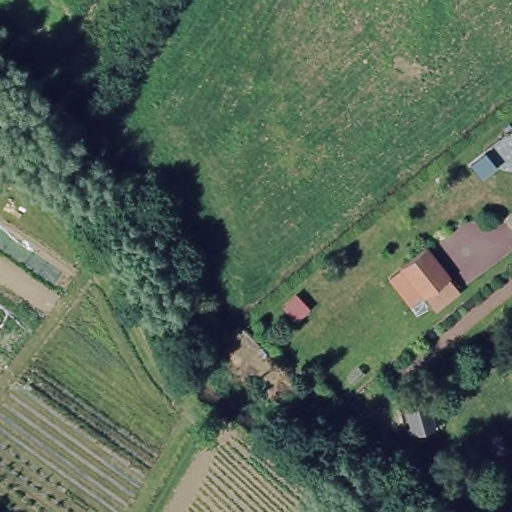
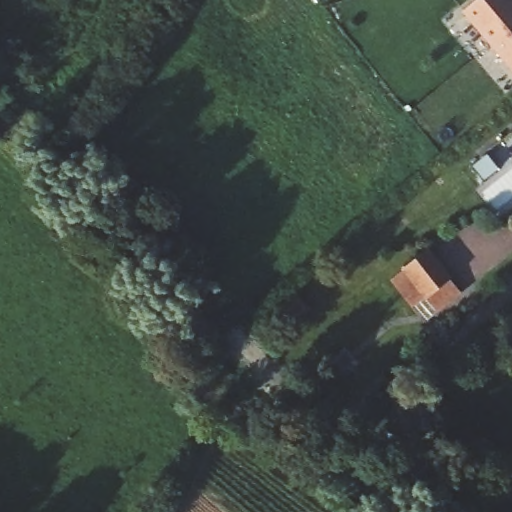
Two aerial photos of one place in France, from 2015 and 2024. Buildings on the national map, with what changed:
new [(474,0),(512,0),(512,74),(460,13),(474,0)]
unchanged [(428,248),(452,278),(462,293),(438,311),(427,298),(425,301),(402,271),(428,248)]

